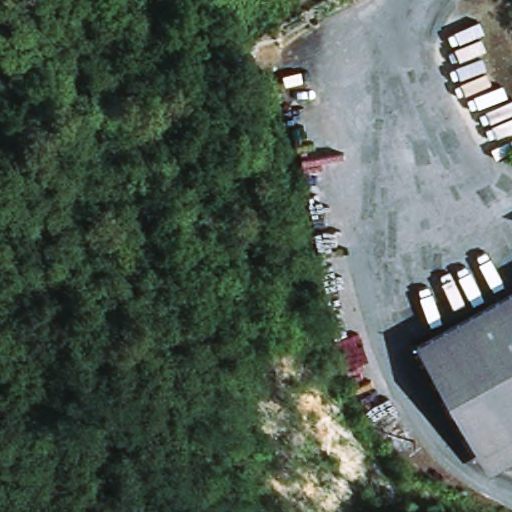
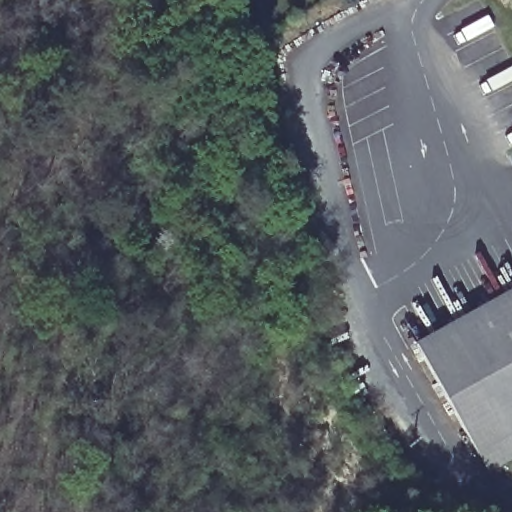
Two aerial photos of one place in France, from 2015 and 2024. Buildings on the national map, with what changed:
unchanged [(512,295),(512,328),(441,367),(440,367),(425,340),(512,295)]
unchanged [(500,474),(441,367),(512,328),(512,468),(500,474)]

